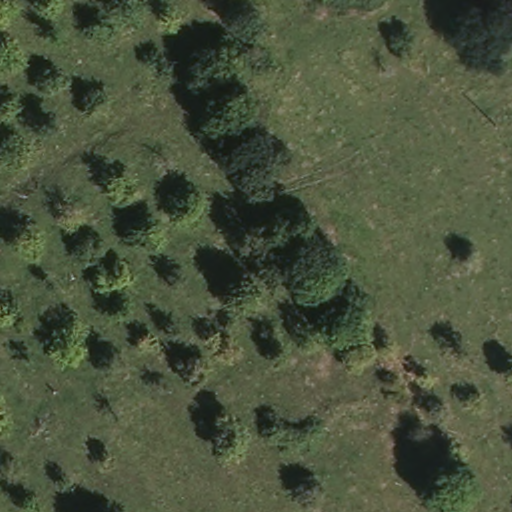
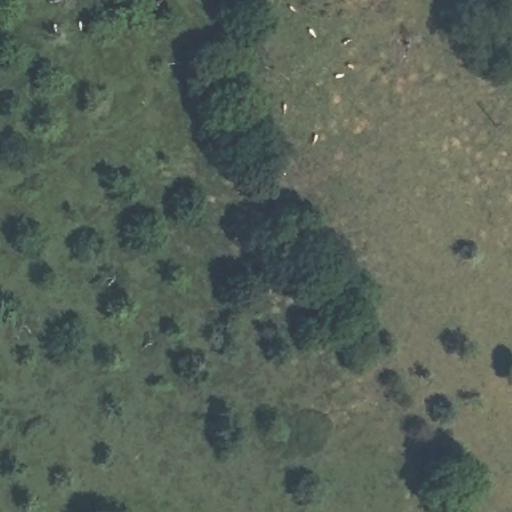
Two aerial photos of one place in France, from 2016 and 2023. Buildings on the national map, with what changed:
unchanged [(486,0),(512,0),(512,2),(494,13),(486,0)]

